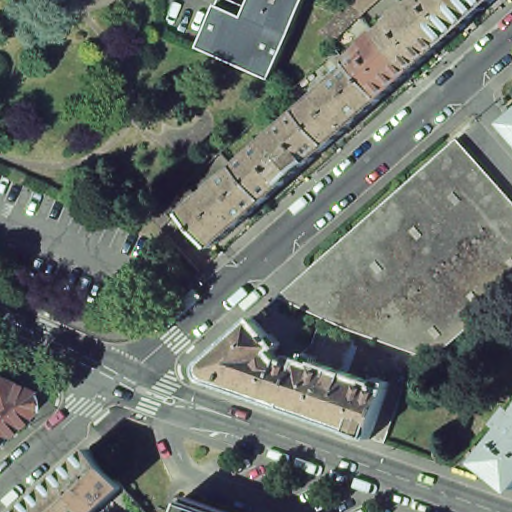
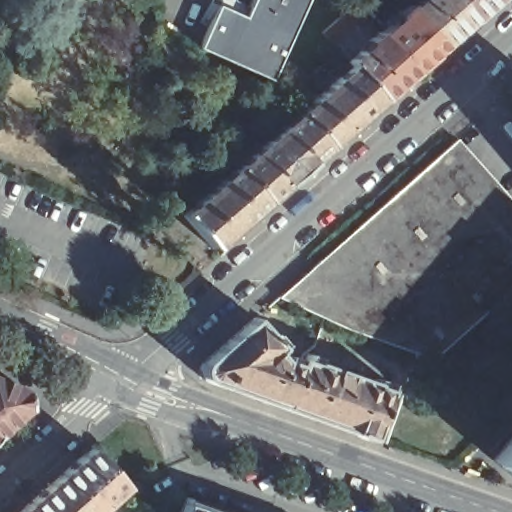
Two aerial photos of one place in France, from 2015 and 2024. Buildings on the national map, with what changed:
unchanged [(198,48),(217,5),(243,17),(251,0),(306,0),(270,79),(198,48)]
unchanged [(351,4),(357,0),(379,0),(361,15),(331,43),(320,33),(324,29),(351,4)]
unchanged [(441,45),(406,6),(406,5),(407,5),(409,8),(417,0),(455,0),(472,18),(442,44),(441,45)]
unchanged [(472,18),(455,0),(493,0),(473,18),(472,18)]
unchanged [(411,73),(376,33),(377,31),(379,34),(397,18),(395,15),(406,6),(441,45),(411,73)]
unchanged [(381,98),(380,99),(351,66),(347,61),(367,44),(365,42),(376,33),(411,73),(381,98)]
unchanged [(327,145),(299,114),(351,66),(380,99),(327,145)]
unchanged [(265,201),(236,169),(299,114),(327,145),(265,201)]
unchanged [(456,139),(512,201),(512,289),(433,359),(347,329),(278,298),(456,139)]
unchanged [(211,248),(183,215),(236,169),(265,201),(211,248)]
unchanged [(192,190),(167,214),(171,219),(160,228),(150,215),(153,212),(175,193),(185,183),(192,190)]
unchanged [(206,382),(204,380),(202,378),(200,369),(200,366),(202,363),(253,318),(280,347),(275,353),(280,359),(298,365),(282,409),(206,382)]
unchanged [(282,409),(298,365),(300,359),(303,360),(305,354),(317,358),(315,363),(374,383),(375,378),(389,383),(387,389),(388,390),(370,439),(282,409)]
unchanged [(28,408),(0,433),(0,380),(25,392),(28,408)]
unchanged [(512,437),(512,475),(493,460),(512,437)]
unchanged [(90,449),(123,487),(95,512),(89,512),(57,477),(90,449)]
unchanged [(57,477),(89,512),(32,512),(26,506),(57,477)]
unchanged [(229,512),(180,512),(185,497),(229,512)]
unchanged [(32,512),(19,512),(26,506),(32,512)]

